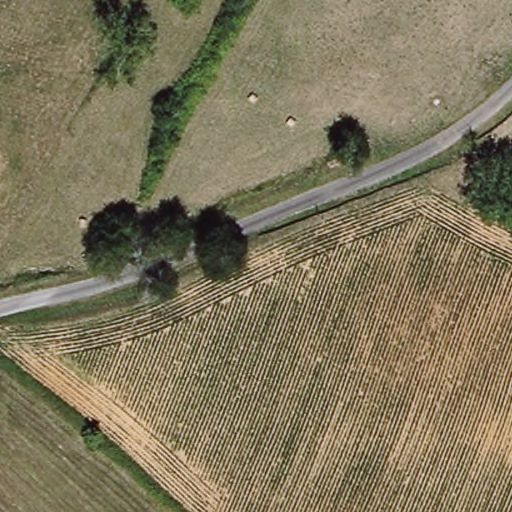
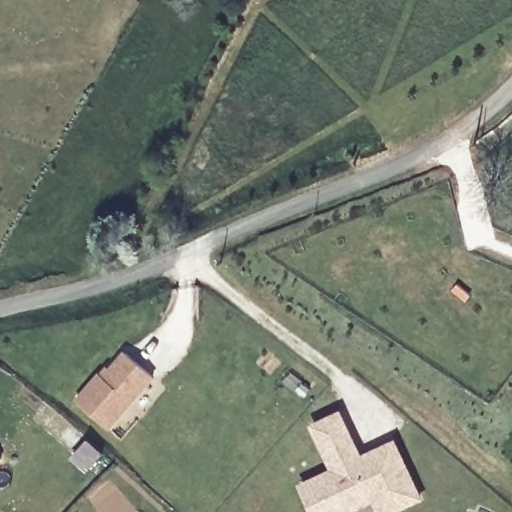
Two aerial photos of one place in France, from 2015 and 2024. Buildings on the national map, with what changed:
new [(156,378),(109,431),(73,400),(105,366),(108,369),(124,351),(156,378)]
new [(310,428),(335,415),(352,448),(358,459),(390,442),(418,496),(388,512),(380,512),(370,493),(334,512),(313,512),(300,488),(313,481),(332,472),(327,461),(310,428)]
new [(0,461),(0,457),(2,460),(0,461)]

